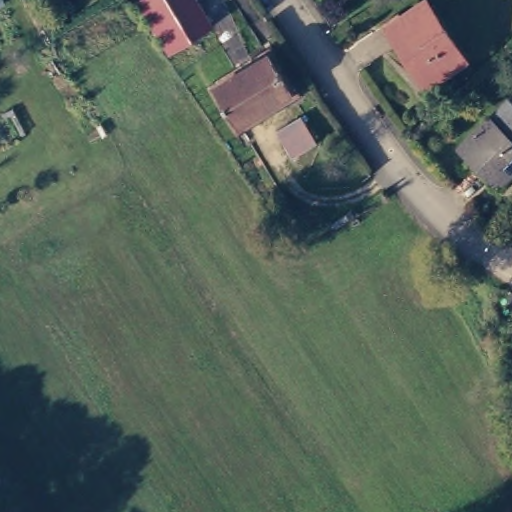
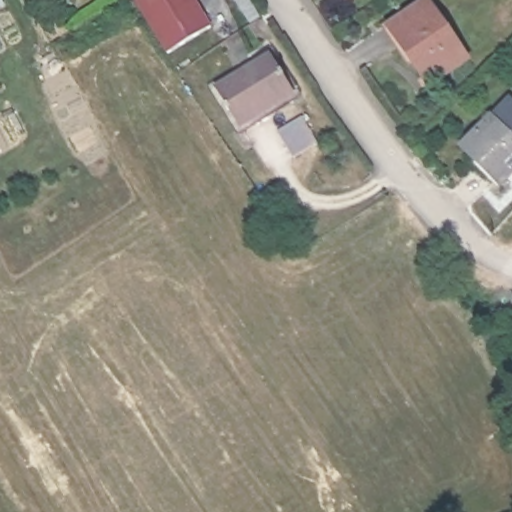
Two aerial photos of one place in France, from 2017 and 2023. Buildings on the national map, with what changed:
unchanged [(213,24),(173,50),(142,2),(145,0),(198,0),(213,24)]
unchanged [(472,59),(435,84),(397,28),(437,4),(472,59)]
unchanged [(272,57),(295,94),(243,127),(219,89),(272,57)]
unchanged [(465,142),(512,97),(512,171),(502,181),(465,142)]
unchanged [(300,116),(317,142),(290,157),(275,131),(300,116)]

